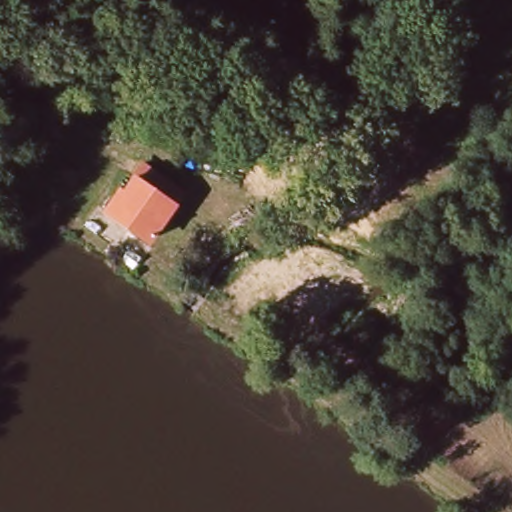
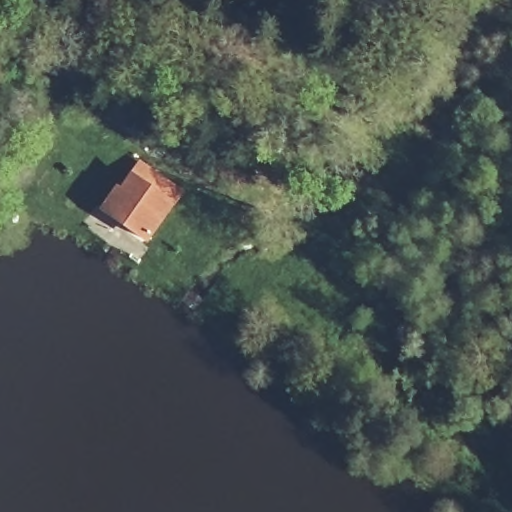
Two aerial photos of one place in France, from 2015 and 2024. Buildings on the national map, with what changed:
unchanged [(153,237),(149,245),(101,220),(109,200),(116,200),(124,184),(132,169),(149,178),(175,190),(153,237)]

